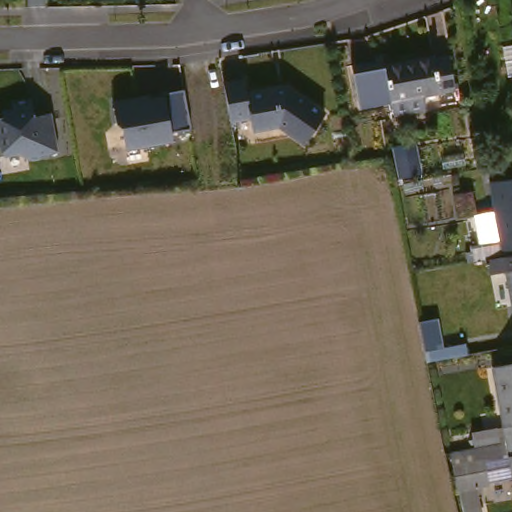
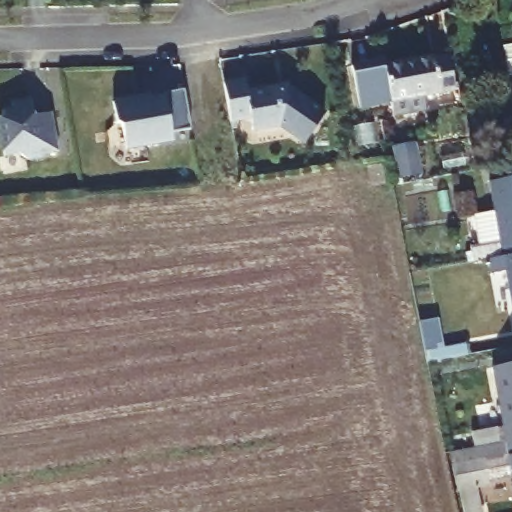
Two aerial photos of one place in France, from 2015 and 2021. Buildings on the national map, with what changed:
unchanged [(401,117),(397,100),(375,105),(362,107),(352,66),(367,62),(385,59),(385,64),(444,50),(452,87),(428,92),(432,111),(401,117)]
unchanged [(510,59),(512,58),(512,69),(511,67),(510,59)]
unchanged [(241,80),(244,96),(284,88),(322,115),(302,144),(275,126),(249,130),(247,118),(227,122),(220,83),(241,80)]
unchanged [(146,101),(162,98),(162,93),(182,90),(190,129),(170,132),(171,140),(124,149),(121,127),(116,124),(112,103),(140,97),(146,101)]
unchanged [(0,107),(7,106),(6,99),(27,95),(31,117),(47,114),(54,149),(37,152),(37,155),(24,157),(15,151),(0,153),(0,107)]
unchanged [(410,138),(418,176),(390,179),(386,140),(410,138)]
unchanged [(495,183),(512,180),(512,254),(508,255),(495,183)]
unchanged [(468,226),(452,229),(447,203),(463,200),(468,226)]
unchanged [(495,277),(491,258),(508,255),(512,254),(512,273),(495,277)]
unchanged [(488,363),(512,357),(512,435),(506,437),(488,363)]
unchanged [(510,456),(467,466),(463,447),(506,437),(512,435),(512,461),(510,456)]

